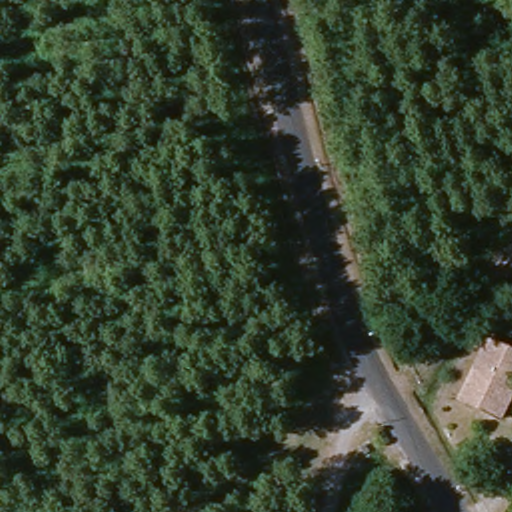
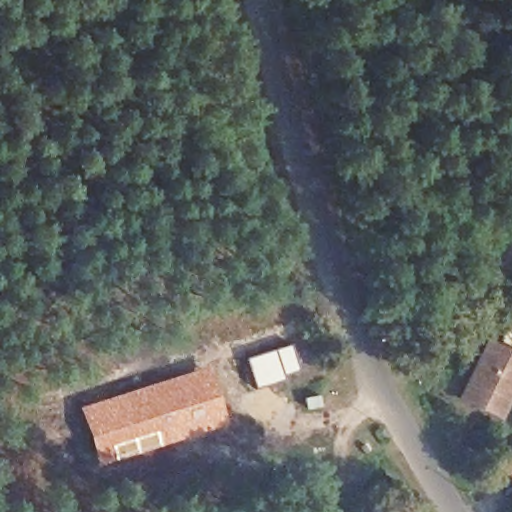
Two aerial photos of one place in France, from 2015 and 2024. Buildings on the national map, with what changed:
unchanged [(460,400),(489,340),(512,352),(512,397),(501,419),(460,400)]
new [(206,363),(226,424),(95,466),(76,405),(206,363)]
new [(503,471),(512,461),(512,478),(503,471)]

